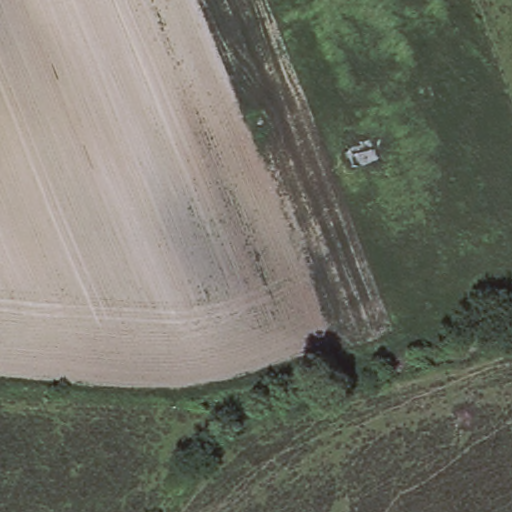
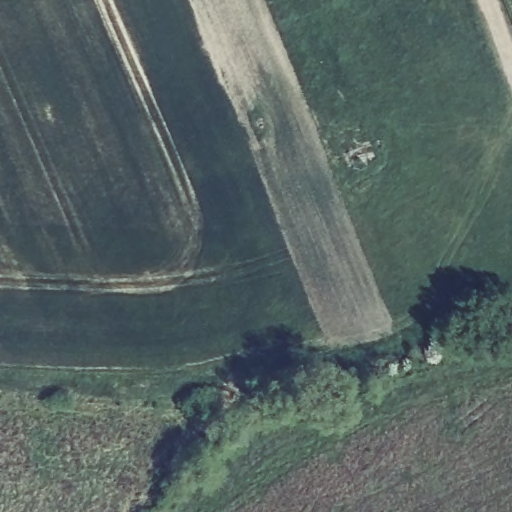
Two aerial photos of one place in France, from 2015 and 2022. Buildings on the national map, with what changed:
unchanged [(340,145),(364,134),(374,161),(350,172),(340,145)]

